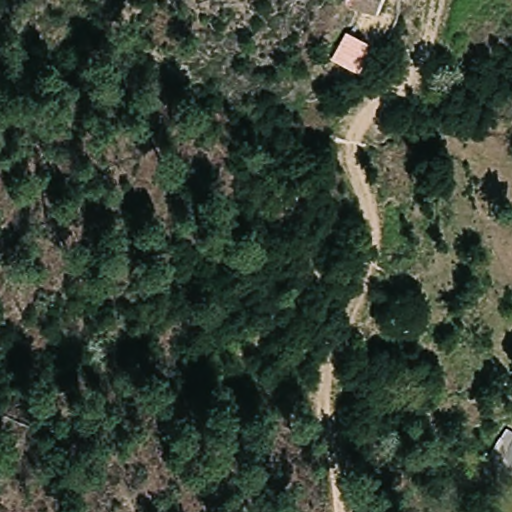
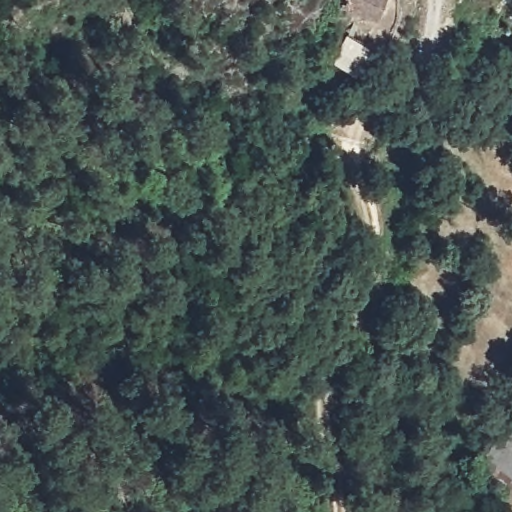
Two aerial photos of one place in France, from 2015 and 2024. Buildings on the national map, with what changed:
unchanged [(382,18),(345,9),(347,0),(388,0),(382,18)]
unchanged [(507,429),(512,431),(512,479),(486,465),(507,429)]

